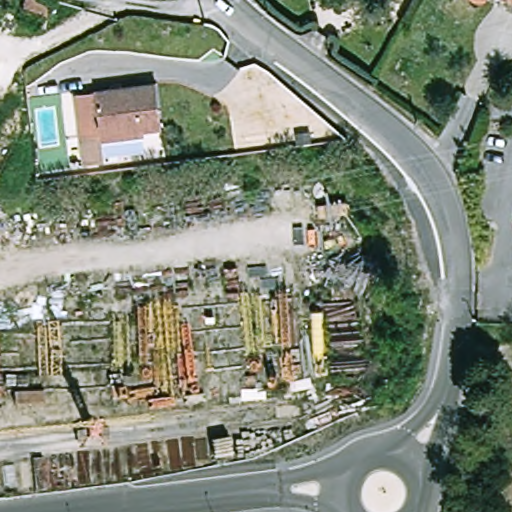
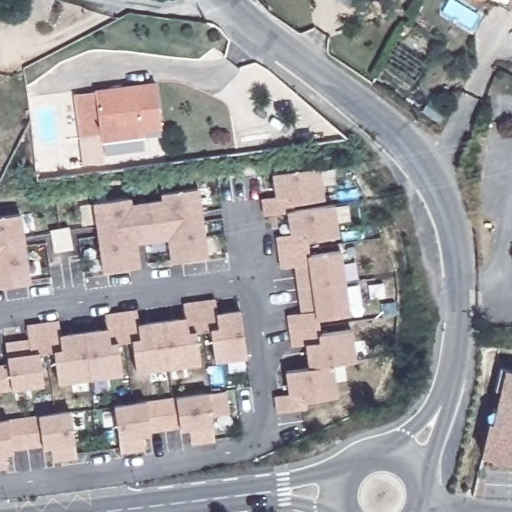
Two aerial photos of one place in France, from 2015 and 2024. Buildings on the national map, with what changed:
unchanged [(49,15),(22,8),(25,0),(53,0),(49,15)]
unchanged [(88,163),(85,137),(78,94),(158,82),(165,125),(146,127),(148,137),(106,143),(108,160),(88,163)]
new [(320,166),(324,198),(292,204),(293,210),(335,203),(339,236),(306,242),(308,254),(341,250),(350,314),(317,319),(319,333),(352,329),(356,361),(334,365),(337,396),(306,401),(307,408),(276,413),(274,397),(289,394),(286,371),(308,367),(305,344),(291,347),(286,314),(300,312),(294,266),(280,268),(276,237),(291,234),(287,211),(264,215),(261,199),(276,197),(273,173),(320,166)]
new [(208,256),(170,262),(166,239),(137,243),(140,265),(103,271),(93,202),(131,197),(132,203),(162,199),(161,193),(199,188),(208,256)]
new [(0,287),(0,217),(21,214),(31,282),(0,287)]
new [(6,356),(5,342),(28,339),(27,325),(58,320),(60,334),(106,328),(105,313),(136,309),(138,323),(184,317),(183,303),(215,298),(216,312),(242,308),(247,357),(215,362),(213,356),(200,358),(200,364),(136,373),(133,353),(120,356),(122,375),(57,383),(55,365),(42,367),(44,386),(11,390),(0,392),(0,364),(7,363),(6,356)]
new [(488,421),(492,422),(505,368),(512,370),(512,464),(480,456),(488,421)]
new [(230,414),(212,416),(213,426),(215,440),(191,444),(188,429),(180,430),(179,426),(151,430),(151,435),(143,436),(144,449),(120,453),(118,438),(114,406),(146,400),(177,396),(209,391),(226,390),(230,414)]
new [(77,458),(52,461),(50,448),(43,449),(43,446),(14,450),(14,453),(5,454),(7,468),(0,469),(0,420),(9,419),(39,414),(70,410),(75,444),(77,458)]

